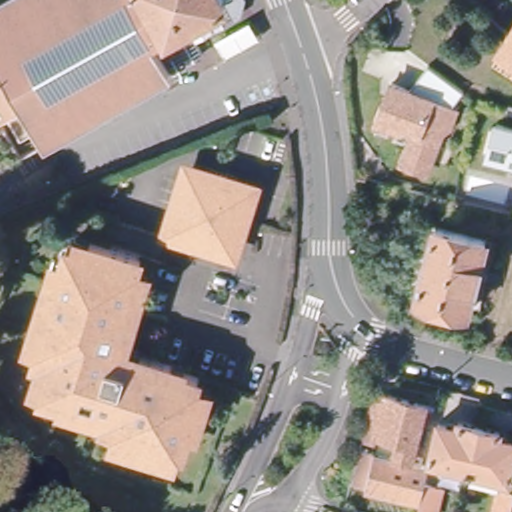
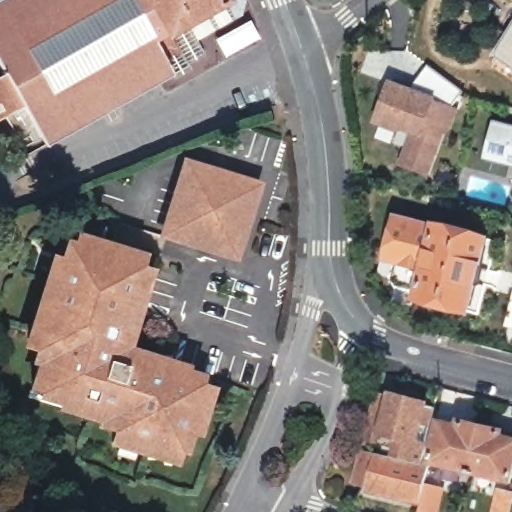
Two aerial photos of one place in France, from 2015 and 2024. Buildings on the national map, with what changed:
unchanged [(16,106),(0,115),(0,2),(3,0),(237,0),(236,6),(190,33),(198,49),(180,59),(182,64),(165,73),(164,70),(157,74),(155,70),(104,99),(96,103),(34,138),(28,128),(16,106)]
unchanged [(502,58),(512,41),(512,64),(502,58)]
unchanged [(423,172),(398,161),(404,147),(411,144),(416,132),(397,124),(395,128),(375,119),(391,81),(409,89),(428,64),(463,93),(451,107),(423,172)]
unchanged [(510,164),(487,159),(495,126),(512,130),(512,165),(510,164)]
unchanged [(240,233),(235,249),(232,248),(230,253),(225,251),(224,254),(208,249),(209,246),(190,240),(189,243),(173,238),(174,235),(169,233),(170,228),(168,228),(173,212),(175,213),(181,193),(179,193),(184,177),(186,178),(188,171),(193,173),(194,170),(204,174),(205,170),(235,180),(234,183),(245,187),(245,189),(250,190),(248,197),(250,198),(245,214),(243,213),(237,232),(240,233)]
new [(428,224),(417,266),(383,260),(395,215),(428,224)]
unchanged [(445,228),(427,302),(410,298),(428,224),(445,228)]
unchanged [(495,241),(478,315),(427,302),(445,228),(495,241)]
unchanged [(121,426),(123,420),(95,411),(96,408),(69,399),(45,393),(55,364),(40,359),(44,346),(36,344),(42,328),(38,327),(46,299),(52,281),(55,274),(65,278),(70,260),(66,259),(72,241),(91,247),(95,237),(147,253),(134,298),(145,301),(136,332),(125,328),(120,343),(177,361),(176,365),(204,374),(194,404),(200,406),(188,446),(154,436),(149,449),(117,438),(121,426)]
unchanged [(393,455),(397,439),(365,430),(375,391),(425,404),(420,422),(430,424),(420,463),(393,455)]
unchanged [(468,471),(428,462),(438,422),(457,427),(458,422),(478,426),(468,471)]
unchanged [(478,426),(500,432),(498,437),(512,440),(512,464),(508,481),(468,471),(478,426)]
unchanged [(427,505),(418,503),(363,490),(365,484),(351,480),(360,450),(420,465),(427,467),(425,474),(435,476),(427,505)]
unchanged [(499,491),(512,494),(512,506),(511,512),(494,512),(499,491)]

